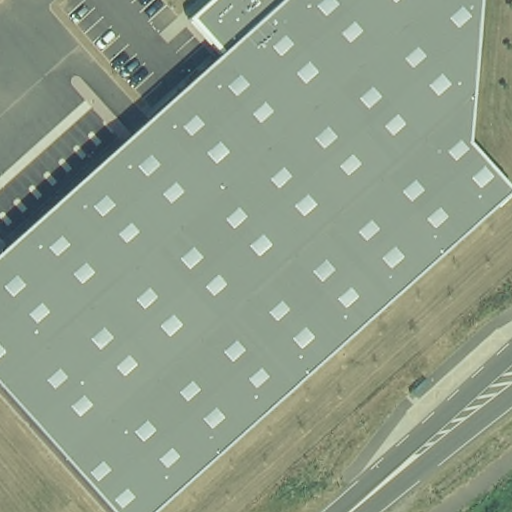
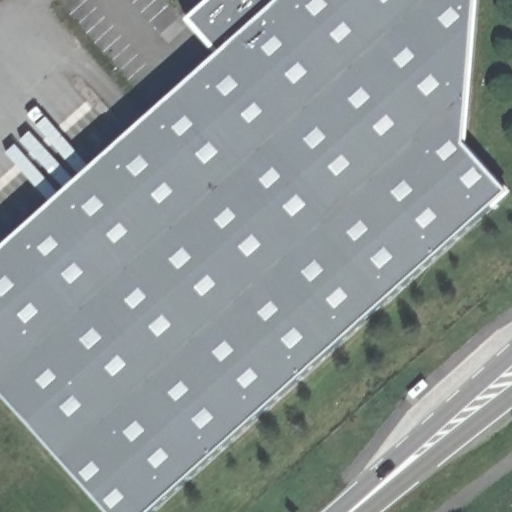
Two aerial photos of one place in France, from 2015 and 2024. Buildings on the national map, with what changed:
unchanged [(187,21),(210,0),(477,0),(465,145),(508,193),(153,512),(107,512),(0,393),(0,252),(218,57),(187,21)]

